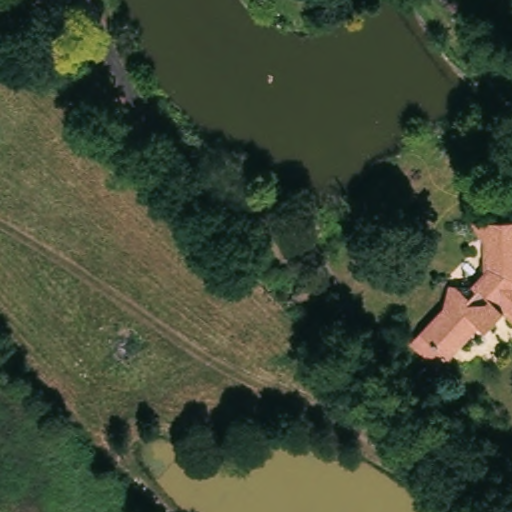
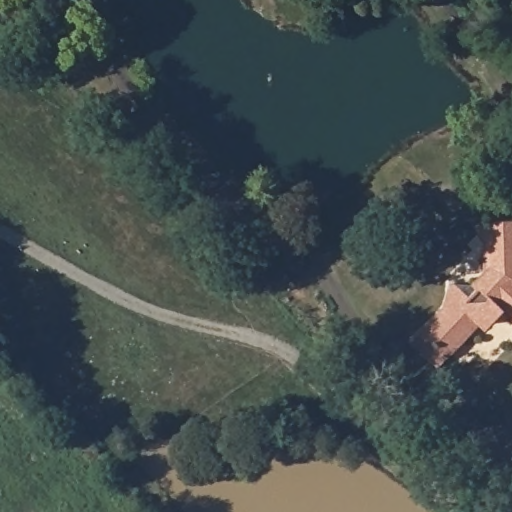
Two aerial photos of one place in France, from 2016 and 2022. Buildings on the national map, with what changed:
unchanged [(480,278),(490,267),(492,244),(495,244),(496,235),(483,234),(484,216),(512,217),(512,312),(505,306),(490,323),(486,318),(445,364),(421,342),(460,297),(462,277),(480,278)]

